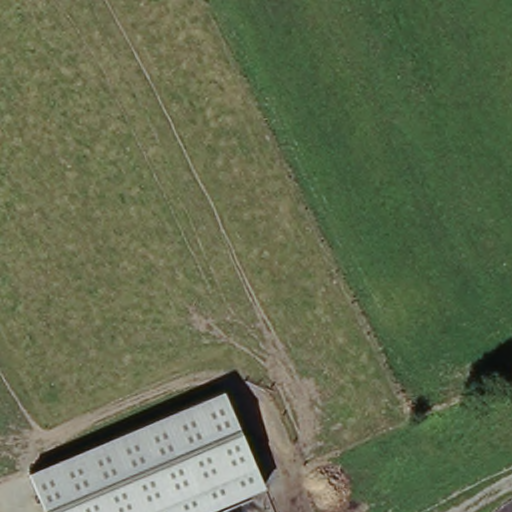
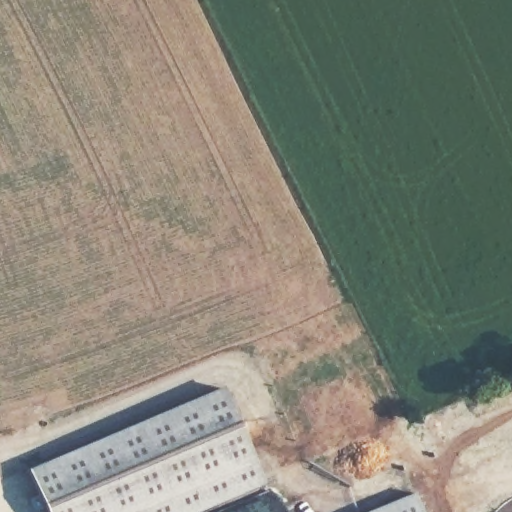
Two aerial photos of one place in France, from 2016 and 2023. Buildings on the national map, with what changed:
unchanged [(267,485),(202,512),(47,512),(29,471),(225,388),(267,485)]
new [(415,494),(422,512),(370,512),(415,494)]

